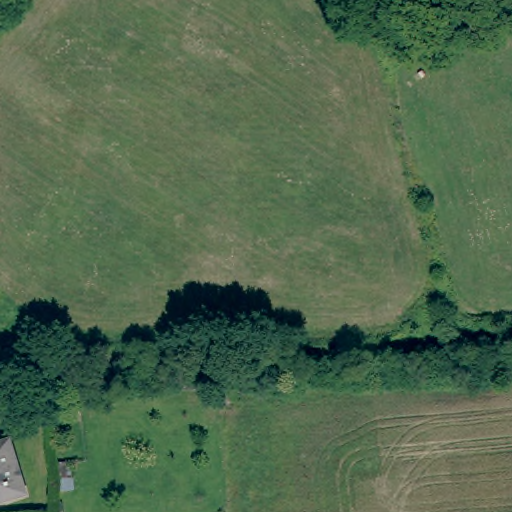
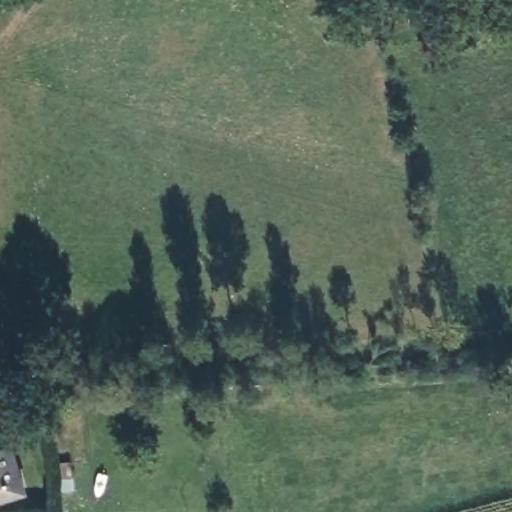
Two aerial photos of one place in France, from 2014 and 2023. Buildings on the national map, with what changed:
unchanged [(23,497),(0,503),(0,445),(9,443),(23,497)]

